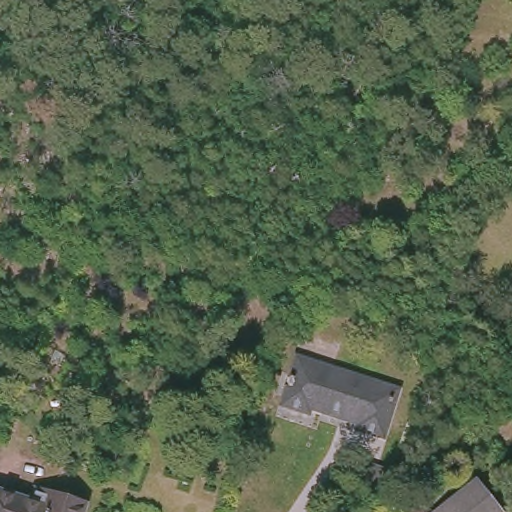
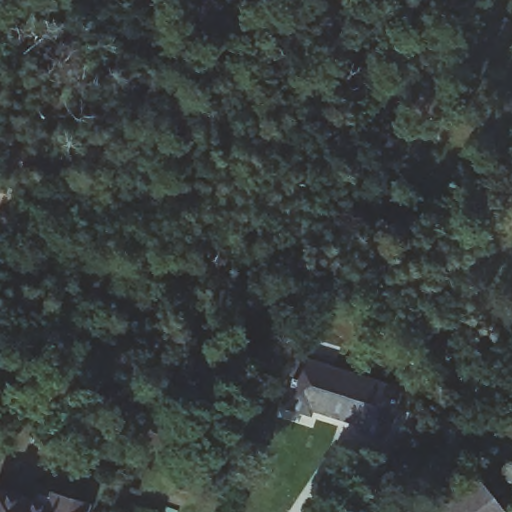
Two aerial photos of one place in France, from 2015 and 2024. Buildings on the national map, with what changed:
unchanged [(400,392),(387,433),(362,426),(364,418),(314,401),(312,406),(287,398),(302,358),(400,392)]
unchanged [(46,481),(91,496),(86,512),(0,512),(0,498),(4,485),(40,496),(46,481)]
unchanged [(446,512),(486,485),(505,512),(446,512)]

